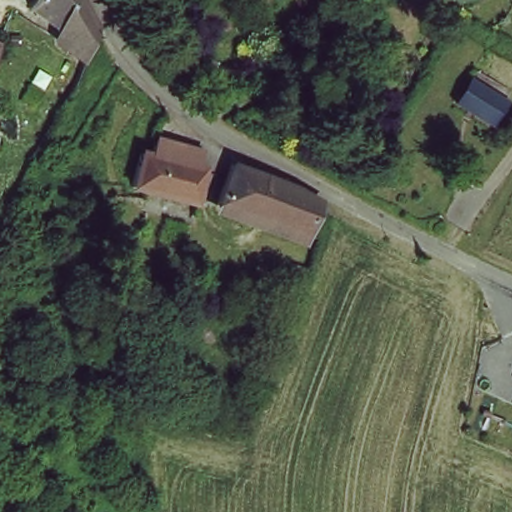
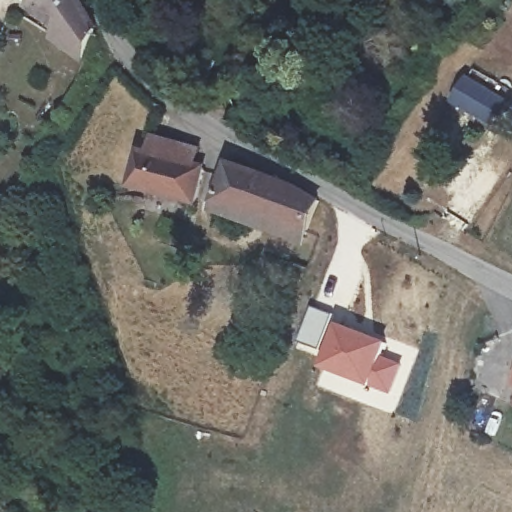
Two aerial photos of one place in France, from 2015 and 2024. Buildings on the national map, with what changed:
unchanged [(50,40),(22,17),(31,0),(80,0),(82,3),(97,40),(78,80),(75,78),(41,59),(50,40)]
unchanged [(489,128),(453,105),(468,81),(504,104),(489,128)]
unchanged [(212,175),(201,210),(128,188),(140,145),(157,150),(162,135),(203,148),(197,169),(212,175)]
unchanged [(322,210),(310,244),(212,211),(226,172),(274,188),(322,210)]
new [(313,306),(334,314),(320,351),(299,343),(313,306)]
new [(340,323),(387,340),(383,356),(401,363),(389,394),(323,369),(340,323)]
unchanged [(512,376),(512,386),(509,384),(512,376)]

